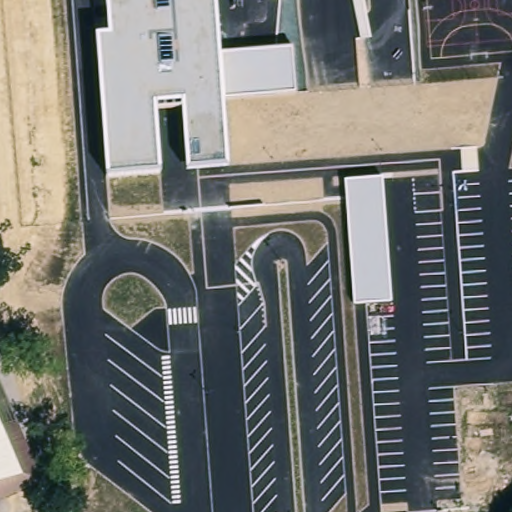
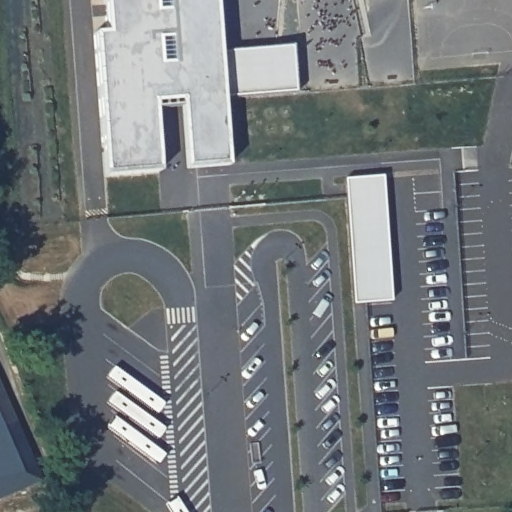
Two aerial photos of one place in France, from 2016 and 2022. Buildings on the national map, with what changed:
unchanged [(218,52),(292,47),(295,89),(223,95),(227,165),(188,168),(182,100),(155,103),(159,169),(107,174),(96,32),(111,31),(108,0),(214,0),(218,52)]
unchanged [(387,179),(395,306),(363,308),(352,180),(387,179)]
unchanged [(46,479),(0,498),(0,371),(46,479)]

